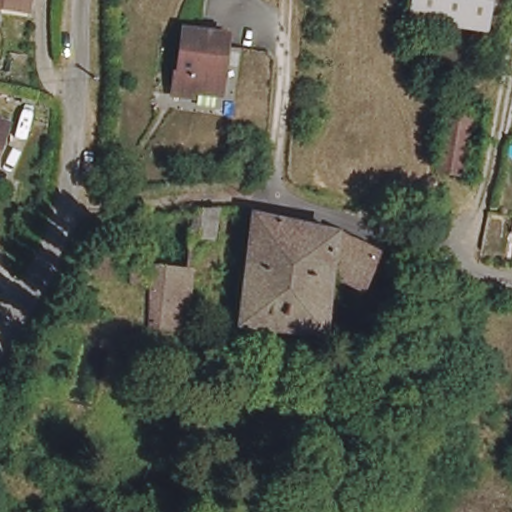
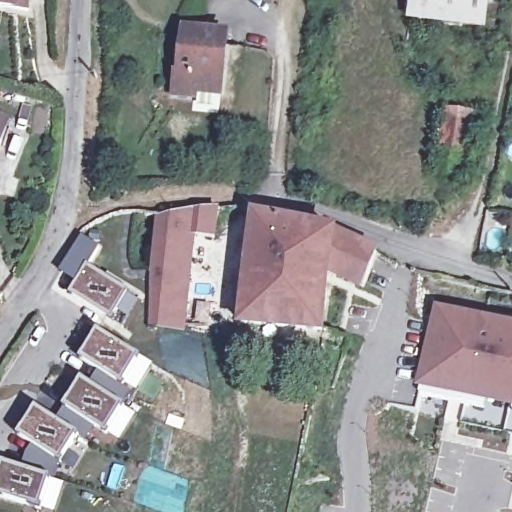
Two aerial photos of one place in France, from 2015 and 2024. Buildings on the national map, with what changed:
unchanged [(0,10),(0,0),(25,0),(22,14),(0,10)]
unchanged [(415,23),(418,0),(471,0),(466,31),(415,23)]
unchanged [(491,35),(473,33),(466,31),(471,0),(497,0),(491,35)]
unchanged [(175,70),(177,70),(183,28),(223,34),(222,46),(217,70),(223,71),(220,93),(194,89),(193,96),(172,92),(175,70)]
unchanged [(453,173),(435,170),(437,158),(445,109),(460,111),(472,113),(464,163),(462,174),(453,173)]
unchanged [(2,145),(0,149),(0,126),(2,126),(7,128),(2,145)]
unchanged [(189,233),(192,208),(200,207),(217,207),(213,237),(192,234),(189,233)]
new [(157,217),(192,208),(189,233),(192,234),(196,234),(187,272),(151,268),(157,217)]
unchanged [(245,326),(258,219),(330,234),(381,260),(367,293),(335,275),(331,282),(327,333),(327,337),(245,326)]
new [(71,292),(77,281),(60,271),(82,236),(99,246),(89,265),(139,300),(123,327),(71,292)]
demolished [(130,278),(130,268),(145,269),(145,279),(130,278)]
unchanged [(149,324),(151,268),(187,272),(180,328),(149,324)]
new [(452,389),(420,382),(423,370),(420,369),(422,357),(426,358),(437,310),(512,326),(512,402),(485,396),(485,398),(482,408),(449,401),(452,391),(452,389)]
new [(21,467),(27,450),(30,444),(17,435),(36,406),(56,418),(83,378),(88,381),(95,369),(80,359),(99,329),(142,358),(125,386),(132,391),(107,433),(94,426),(86,439),(78,434),(60,462),(56,459),(40,509),(0,496),(0,469),(3,460),(21,467)]

